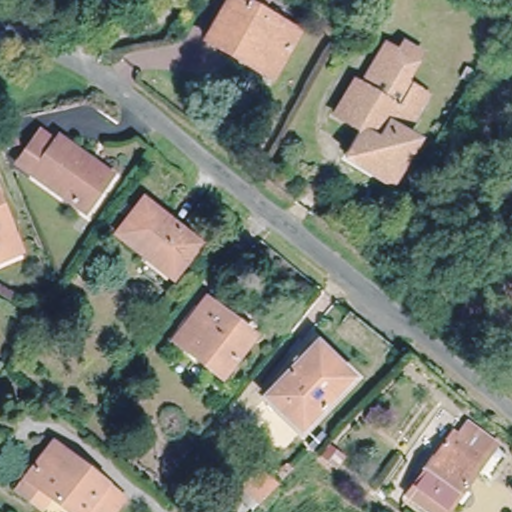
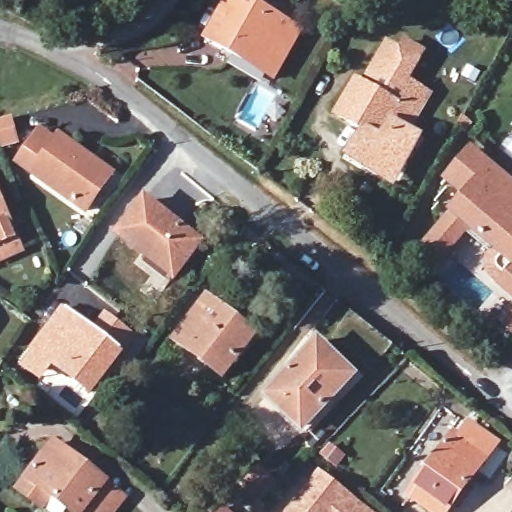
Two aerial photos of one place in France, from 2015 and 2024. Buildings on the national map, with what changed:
unchanged [(295,30),(269,77),(202,40),(225,0),(245,0),(254,6),(258,0),(265,0),(259,9),(295,30)]
unchanged [(366,170),(352,162),(361,147),(367,135),(340,119),(357,87),(385,102),(392,89),(373,78),(389,52),(400,58),(405,49),(422,59),(417,67),(401,95),(399,94),(391,106),(402,111),(414,91),(431,100),(409,140),(420,146),(404,172),(395,187),(366,170)]
unchanged [(0,129),(0,119),(2,119),(16,116),(22,140),(7,147),(0,129)]
unchanged [(124,177),(99,210),(32,161),(53,132),(69,142),(71,138),(124,177)]
new [(491,270),(489,262),(490,257),(492,253),(498,247),(471,224),(455,243),(444,256),(427,242),(438,229),(468,193),(448,176),(473,147),(512,179),(512,257),(512,288),(494,273),(491,270)]
unchanged [(0,262),(0,186),(4,185),(5,190),(2,192),(20,240),(25,252),(0,262)]
unchanged [(175,272),(123,232),(147,202),(199,242),(175,272)]
unchanged [(256,334),(223,375),(176,337),(207,297),(214,302),(256,334)]
new [(91,327),(105,311),(138,337),(125,354),(91,397),(52,369),(40,382),(18,365),(63,305),(91,327)]
unchanged [(364,363),(329,331),(349,307),(389,339),(364,363)]
new [(512,321),(512,326),(509,323),(512,321)]
unchanged [(320,342),(354,376),(303,430),(269,397),(320,342)]
unchanged [(411,488),(456,427),(461,431),(470,418),(485,429),(497,438),(488,451),(481,461),(444,511),(411,488)]
unchanged [(112,512),(75,512),(70,508),(67,512),(51,512),(19,487),(29,475),(55,442),(105,481),(103,483),(123,498),(112,512)]
unchanged [(259,501),(244,486),(260,468),(277,482),(259,501)]
new [(318,471),(372,512),(285,512),(318,471)]

